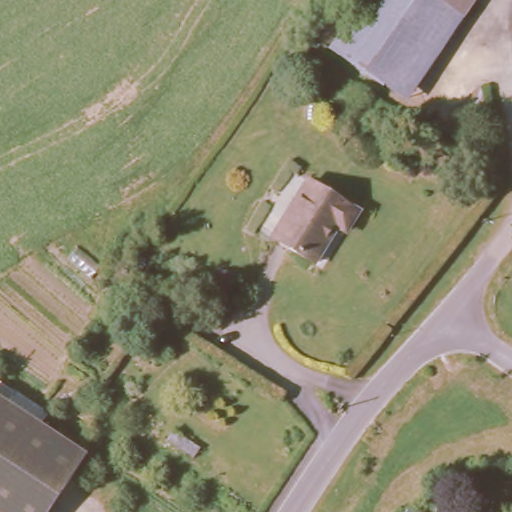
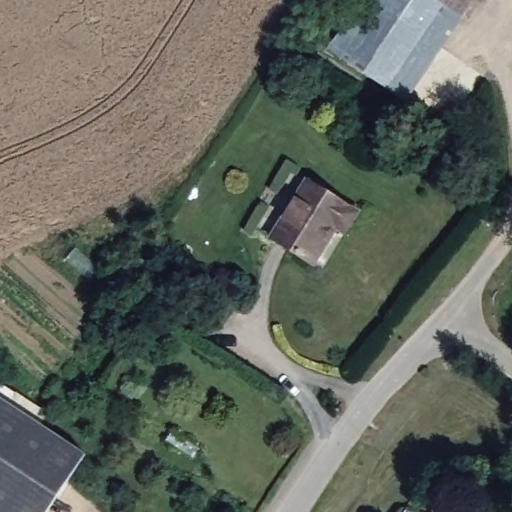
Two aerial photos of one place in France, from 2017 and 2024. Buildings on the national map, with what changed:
unchanged [(420,112),(317,48),(346,0),(443,0),(476,20),(420,112)]
unchanged [(476,20),(443,0),(487,0),(476,20)]
unchanged [(339,232),(330,226),(306,263),(264,238),(301,181),(351,214),(339,232)]
unchanged [(0,512),(0,403),(83,459),(73,473),(47,512),(0,512)]

